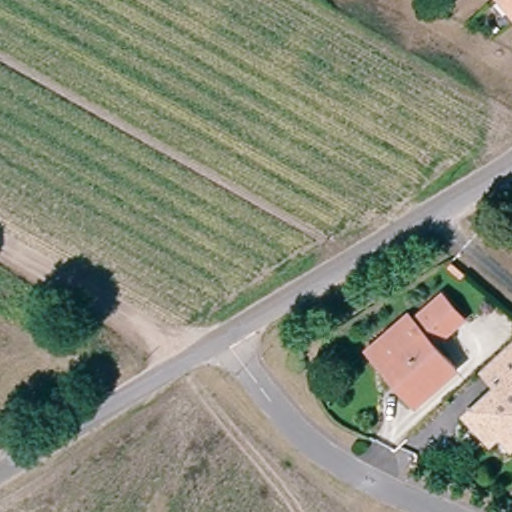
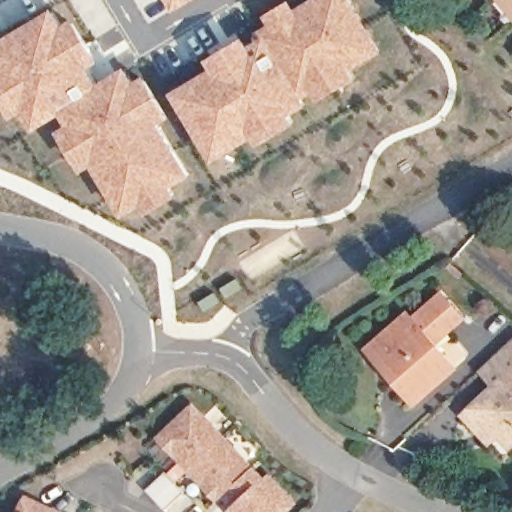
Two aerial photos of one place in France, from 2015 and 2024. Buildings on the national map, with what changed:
new [(172,12),(164,0),(193,0),(172,12)]
new [(212,70),(206,60),(245,37),(249,45),(259,39),(254,33),(269,24),(264,16),(289,0),(295,9),(310,0),(352,0),(383,51),(350,71),(356,80),(319,103),(313,93),(304,97),(309,104),(291,115),(296,124),(259,147),(254,139),(213,164),(171,94),(212,70)]
unchanged [(493,0),(512,0),(512,20),(493,0)]
new [(61,115),(34,132),(23,114),(12,119),(0,100),(0,40),(54,8),(64,24),(74,18),(101,62),(90,68),(99,83),(126,65),(135,80),(145,75),(170,118),(159,124),(192,176),(172,187),(178,196),(148,215),(143,207),(123,218),(93,167),(82,173),(56,132),(67,125),(61,115)]
unchanged [(375,348),(409,319),(441,293),(463,319),(447,333),(442,327),(431,335),(458,367),(419,399),(375,348)]
unchanged [(411,406),(363,347),(404,313),(409,319),(375,348),(419,399),(411,406)]
unchanged [(482,432),(466,414),(494,388),(479,371),(481,369),(494,356),(512,341),(512,444),(509,446),(498,434),(490,441),(482,432)]
new [(237,512),(227,501),(222,505),(158,437),(193,403),(265,476),(270,472),(299,501),(287,512),(237,512)]
unchanged [(59,512),(23,512),(30,497),(59,512)]

